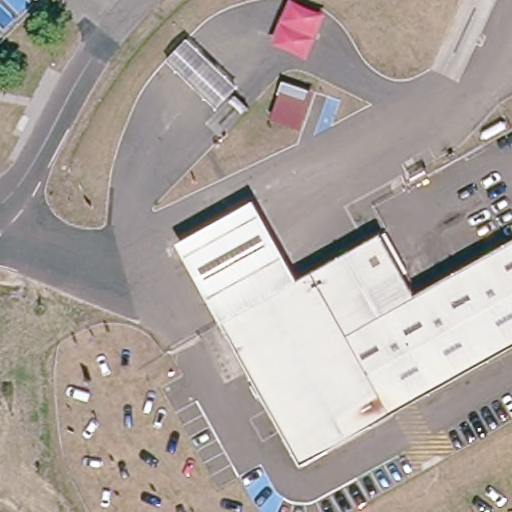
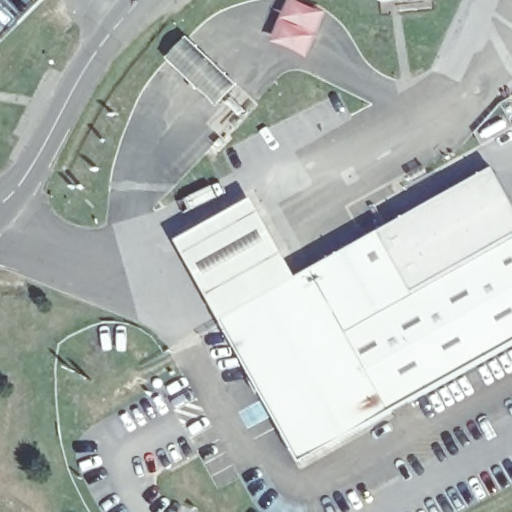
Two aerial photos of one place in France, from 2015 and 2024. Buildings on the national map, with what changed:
unchanged [(306,61),(270,45),(290,0),(326,16),(306,61)]
unchanged [(167,60),(176,51),(187,39),(191,42),(243,92),(222,113),(167,60)]
demolished [(306,104),(278,96),(282,84),(310,92),(306,104)]
new [(512,201),(512,239),(510,241),(409,297),(376,235),(493,168),(512,201)]
unchanged [(173,243),(252,199),(296,278),(217,322),(173,243)]
unchanged [(409,297),(510,241),(512,245),(512,351),(299,469),(237,357),(217,322),(296,278),(375,234),(409,297)]

